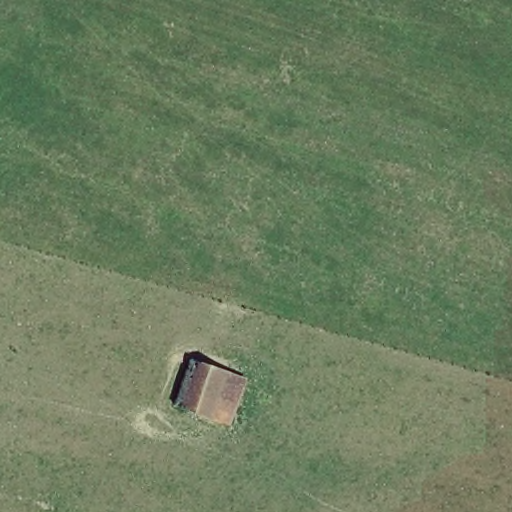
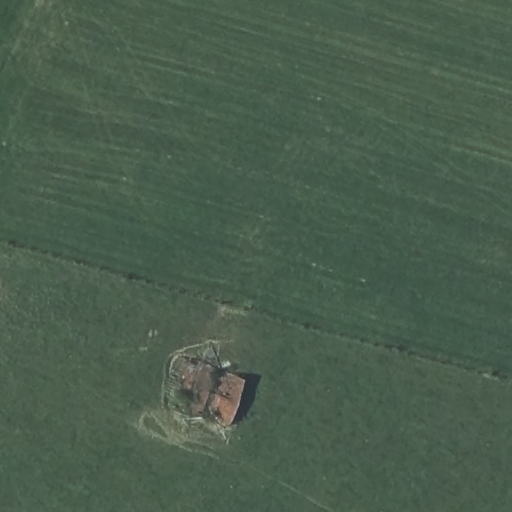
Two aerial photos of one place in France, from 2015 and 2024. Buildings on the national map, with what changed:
unchanged [(191,361),(246,378),(230,428),(174,412),(191,361)]

